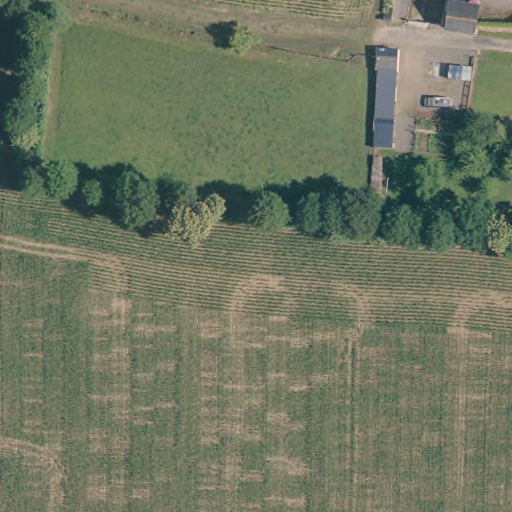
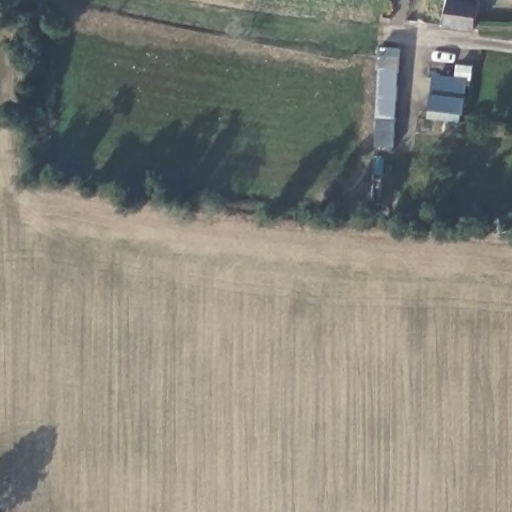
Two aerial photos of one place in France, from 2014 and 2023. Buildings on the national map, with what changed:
unchanged [(443,42),(448,14),(475,18),(471,46),(443,42)]
unchanged [(377,139),(380,109),(386,40),(407,42),(399,110),(396,141),(377,139)]
new [(439,78),(468,83),(462,115),(433,104),(439,78)]

